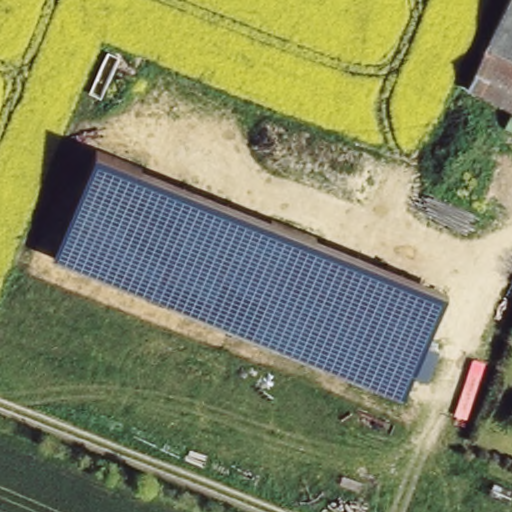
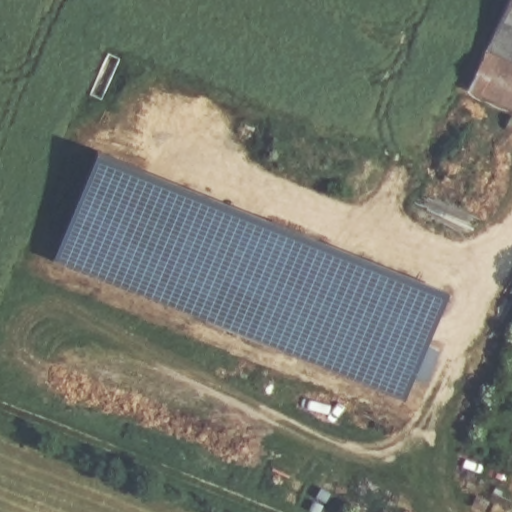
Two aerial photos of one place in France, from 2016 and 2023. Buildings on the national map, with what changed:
unchanged [(512,0),(512,57),(495,50),(492,48),(509,0),(512,0)]
unchanged [(495,50),(512,57),(512,113),(478,100),(495,50)]
unchanged [(54,258),(98,151),(447,289),(404,398),(54,258)]

